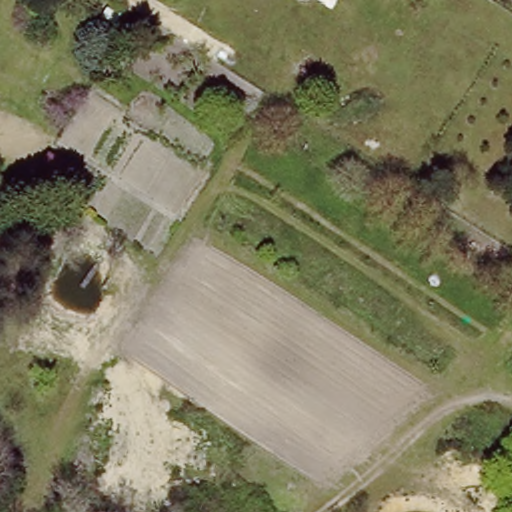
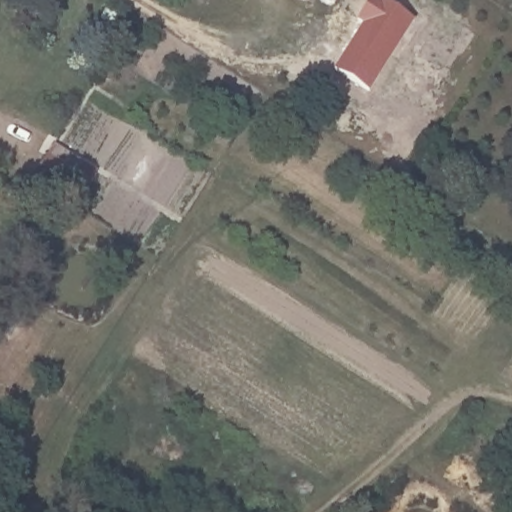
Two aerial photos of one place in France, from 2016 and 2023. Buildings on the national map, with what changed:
unchanged [(310,0),(320,0),(317,4),(310,0)]
new [(359,23),(374,0),(385,0),(417,20),(372,91),(338,69),(365,27),(359,23)]
demolished [(300,51),(285,74),(270,65),(285,42),(300,51)]
unchanged [(338,75),(325,98),(309,88),(323,66),(338,75)]
unchanged [(72,178),(58,201),(32,185),(47,162),(72,178)]

